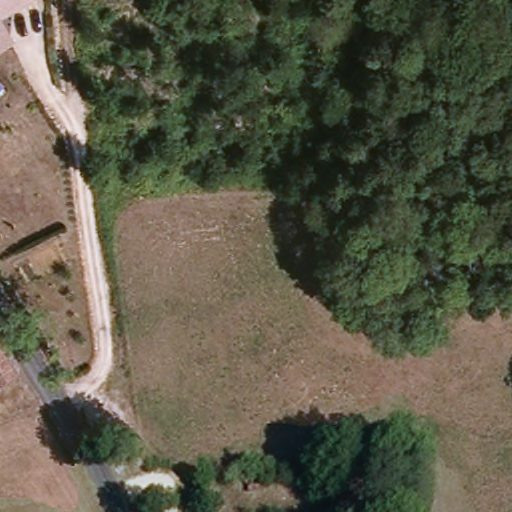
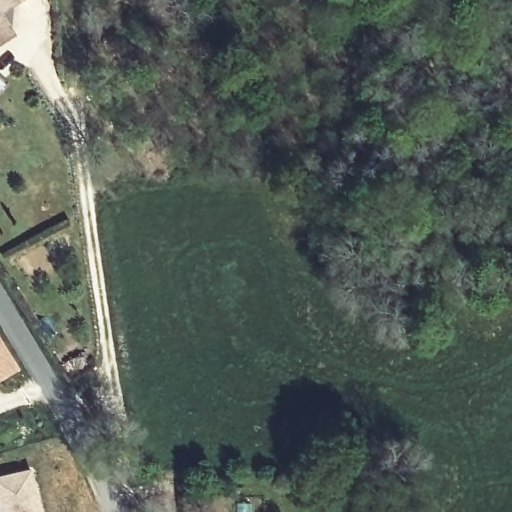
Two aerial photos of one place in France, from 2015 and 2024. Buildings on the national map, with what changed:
unchanged [(19,38),(0,48),(0,0),(27,0),(5,14),(19,38)]
unchanged [(243,0),(243,10),(219,9),(219,0),(243,0)]
unchanged [(0,379),(0,340),(19,369),(0,379)]
demolished [(9,412),(0,416),(0,399),(3,398),(9,412)]
new [(0,476),(32,469),(43,512),(1,512),(0,510),(0,476)]

